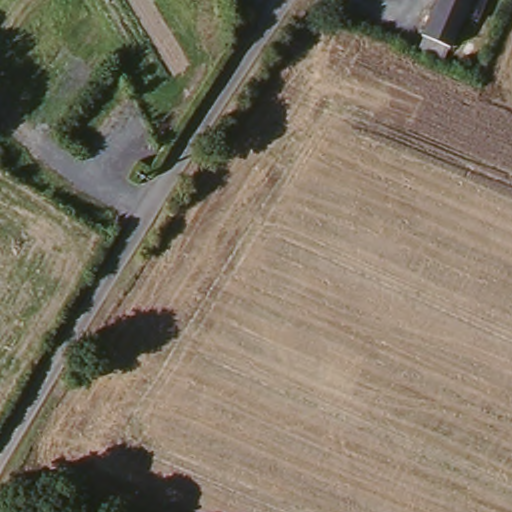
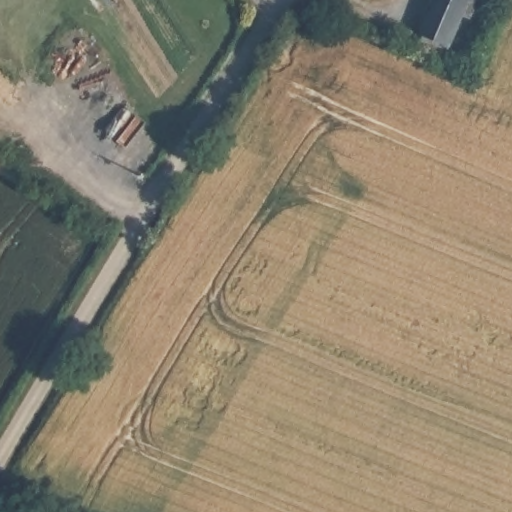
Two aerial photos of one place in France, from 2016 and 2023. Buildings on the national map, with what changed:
unchanged [(476,21),(463,16),(451,47),(449,46),(443,58),(417,48),(437,0),(485,0),(476,21)]

